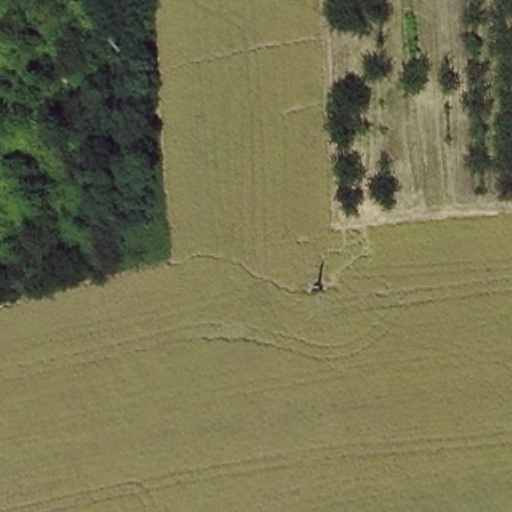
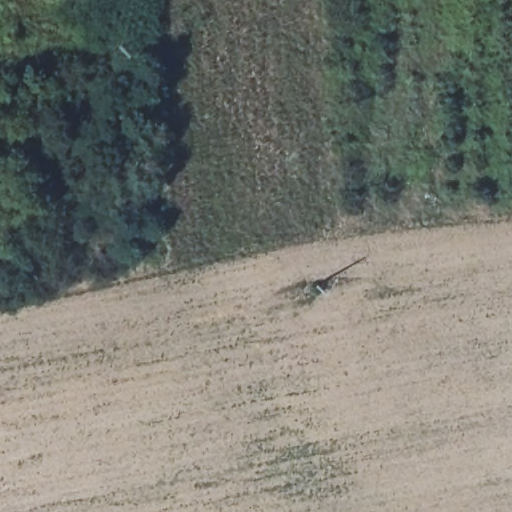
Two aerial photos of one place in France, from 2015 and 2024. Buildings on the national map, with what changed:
[]

